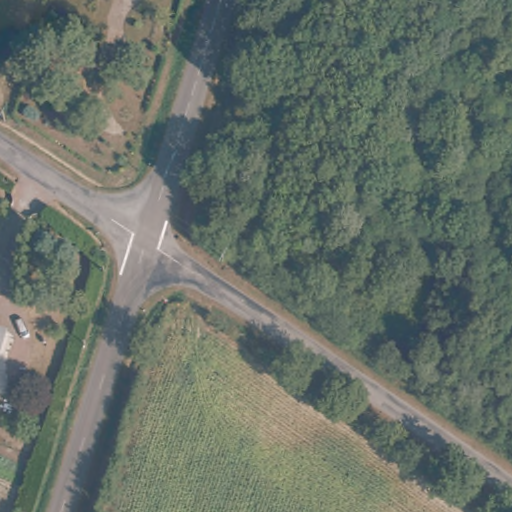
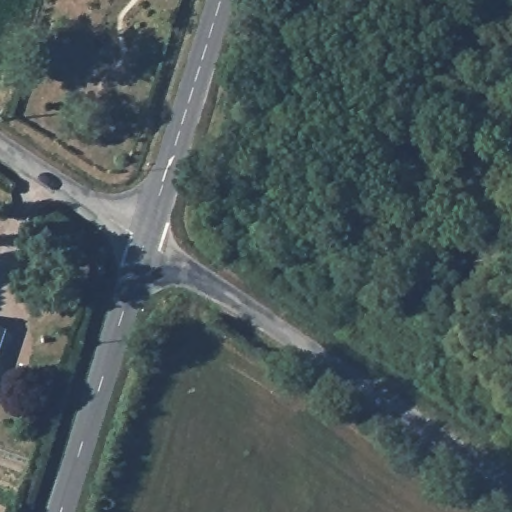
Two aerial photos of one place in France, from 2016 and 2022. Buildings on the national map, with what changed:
unchanged [(9,332),(0,358),(0,329),(9,332)]

